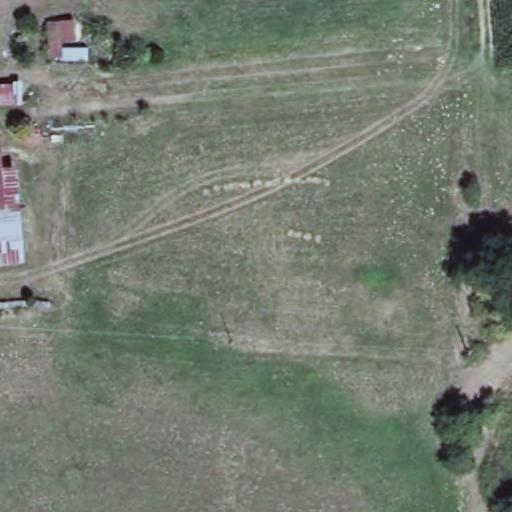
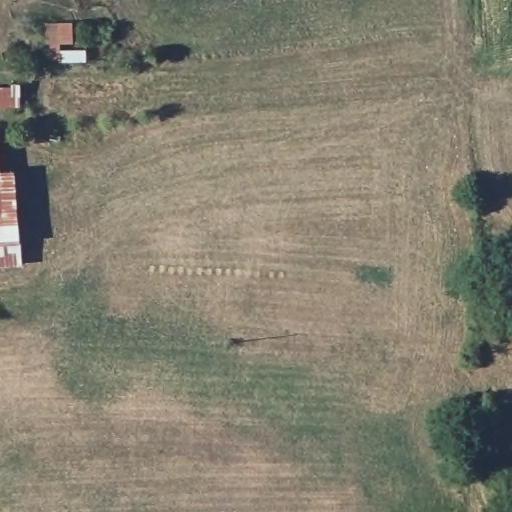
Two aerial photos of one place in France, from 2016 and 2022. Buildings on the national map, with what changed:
unchanged [(6,167),(24,168),(27,262),(0,266),(0,129),(4,128),(6,167)]

